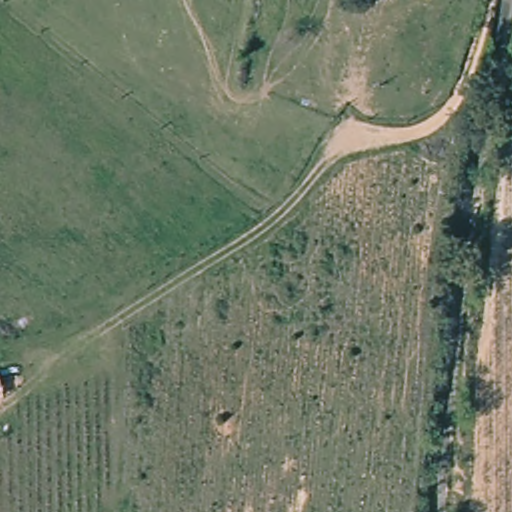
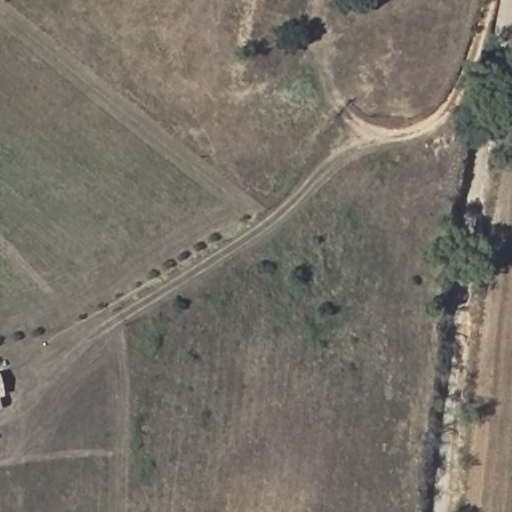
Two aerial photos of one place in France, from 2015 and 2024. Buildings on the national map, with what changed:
unchanged [(0,388),(0,378),(3,387),(0,388)]

